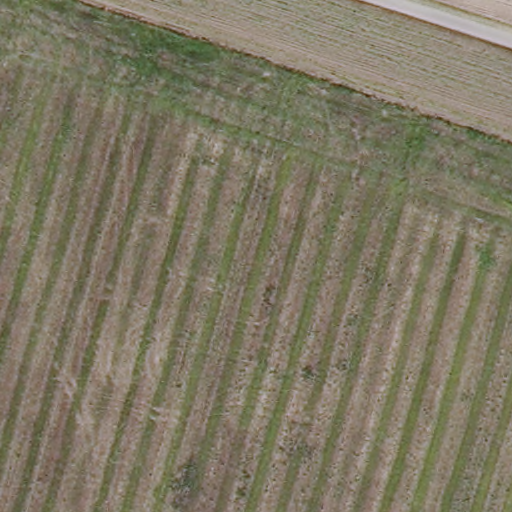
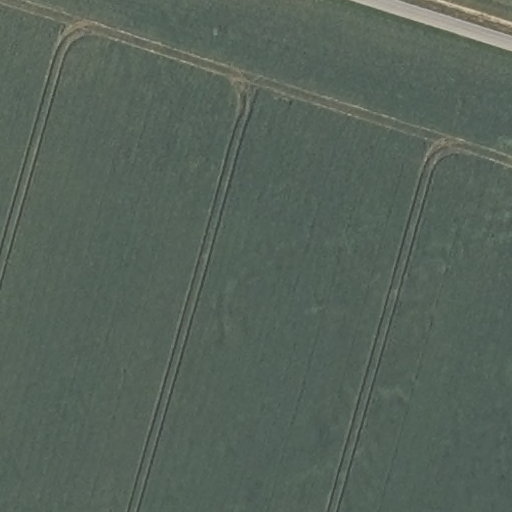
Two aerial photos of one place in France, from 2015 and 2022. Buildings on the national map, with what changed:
[]

